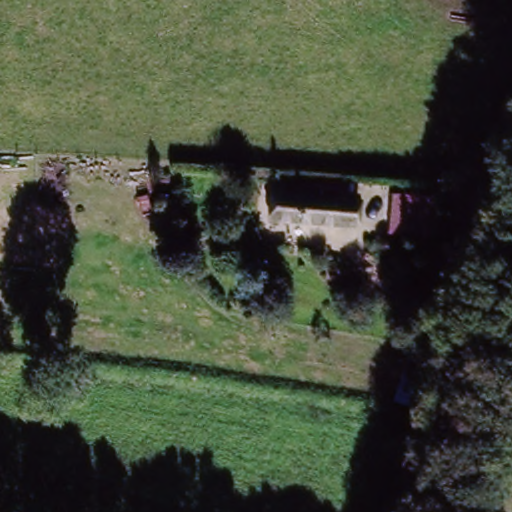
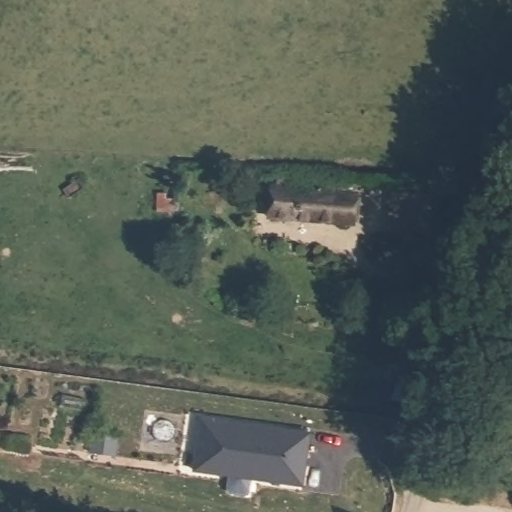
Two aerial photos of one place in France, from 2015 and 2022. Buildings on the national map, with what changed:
unchanged [(345,228),(272,219),(275,194),(302,197),(305,178),(340,182),(338,201),(349,202),(345,228)]
new [(312,431),(304,487),(252,479),(251,494),(227,491),(229,475),(194,470),(200,416),(312,431)]

